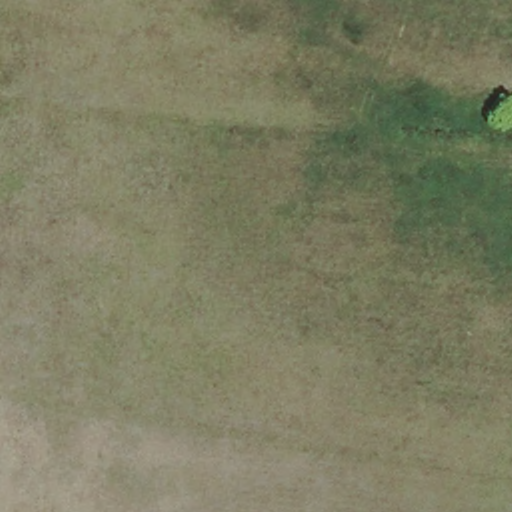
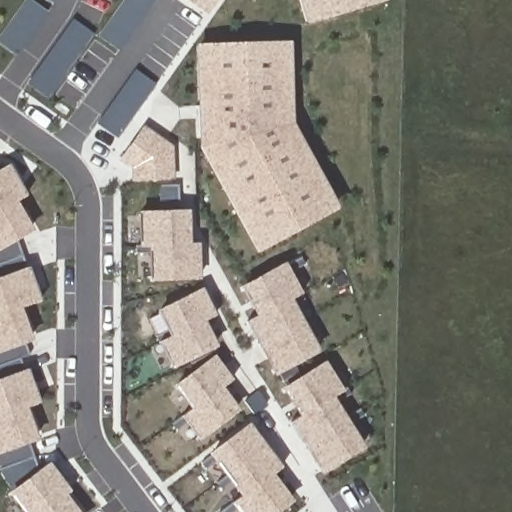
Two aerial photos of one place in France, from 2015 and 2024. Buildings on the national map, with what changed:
new [(123,0),(154,0),(119,49),(99,34),(123,0)]
new [(210,13),(191,0),(219,0),(210,13)]
new [(302,0),(377,0),(307,20),(304,7),(302,0)]
new [(50,97),(30,83),(74,22),(93,36),(50,97)]
new [(306,160),(322,192),(316,195),(325,212),(268,243),(259,226),(253,230),(241,210),(247,206),(238,189),(231,192),(216,164),(222,160),(213,144),(212,84),(212,105),(200,105),(199,46),(211,46),(276,44),(276,63),(284,63),(285,81),(278,82),(279,100),(285,100),(287,125),(291,132),(285,135),(300,163),(306,160)]
new [(335,206),(325,212),(316,195),(322,192),(306,160),(300,163),(285,135),(291,132),(287,125),(285,100),(279,100),(278,82),(285,81),(284,63),(276,63),(276,44),(288,44),(292,123),(335,206)]
new [(154,85),(120,136),(101,123),(134,72),(154,85)]
new [(196,137),(195,105),(212,105),(213,137),(196,137)]
new [(118,160),(143,125),(173,146),(174,180),(132,181),(131,169),(118,160)]
new [(241,210),(253,230),(259,226),(268,243),(257,249),(201,148),(201,138),(213,137),(213,144),(222,160),(216,164),(231,192),(238,189),(247,206),(241,210)]
new [(23,198),(0,212),(0,163),(7,168),(23,198)]
new [(182,213),(162,214),(161,185),(181,185),(182,213)]
new [(0,246),(0,212),(15,203),(29,229),(0,246)]
new [(186,245),(142,246),(141,214),(185,214),(186,245)]
new [(24,256),(0,265),(0,246),(17,236),(24,256)]
new [(151,277),(151,246),(195,245),(195,276),(151,277)]
new [(135,253),(135,246),(151,246),(151,253),(135,253)]
new [(28,269),(38,301),(0,316),(0,265),(24,256),(28,269)]
new [(286,266),(303,256),(307,264),(290,273),(286,266)]
new [(247,287),(286,266),(301,295),(263,315),(247,287)]
new [(290,300),(304,293),(307,299),(294,306),(290,300)]
new [(167,340),(155,315),(194,296),(207,320),(195,326),(167,340)]
new [(252,321),(290,300),(303,323),(265,343),(252,321)]
new [(0,316),(20,308),(30,338),(0,349),(0,316)]
new [(279,370),(265,343),(303,323),(317,349),(279,370)]
new [(195,326),(207,349),(166,369),(155,346),(195,326)]
new [(153,347),(149,338),(163,332),(167,340),(153,347)]
new [(0,350),(25,340),(30,355),(0,366),(0,350)]
new [(207,349),(211,355),(185,368),(181,362),(207,349)]
new [(192,365),(211,355),(214,361),(198,373),(192,365)]
new [(0,367),(22,358),(26,371),(38,404),(0,418),(0,367)]
new [(230,382),(196,408),(180,386),(214,361),(230,382)]
new [(286,382),(279,370),(295,361),(302,371),(306,379),(292,388),(286,382)]
new [(309,414),(292,388),(329,364),(346,391),(309,414)]
new [(339,404),(335,397),(353,387),(356,393),(339,404)]
new [(186,415),(220,390),(235,410),(201,436),(186,415)]
new [(270,405),(258,415),(248,402),(262,392),(270,405)]
new [(298,421),(335,397),(349,418),(312,442),(298,421)]
new [(349,418),(366,408),(369,414),(352,424),(349,418)]
new [(0,417),(24,409),(34,437),(0,451),(0,417)]
new [(174,424),(186,415),(190,422),(179,431),(174,424)]
new [(328,468),(312,442),(349,418),(365,445),(328,468)]
new [(216,454),(251,427),(267,448),(282,468),(247,494),(232,474),(216,454)]
new [(28,512),(13,492),(2,476),(0,471),(0,451),(29,439),(36,456),(47,466),(68,494),(44,512),(28,512)]
new [(209,469),(204,462),(216,454),(221,460),(209,469)]
new [(220,483),(232,474),(237,481),(225,490),(220,483)]
new [(245,512),(238,502),(273,476),(291,500),(276,512),(245,512)]
new [(75,512),(45,512),(63,498),(75,512)]
new [(242,508),(237,512),(225,512),(238,502),(242,508)]

